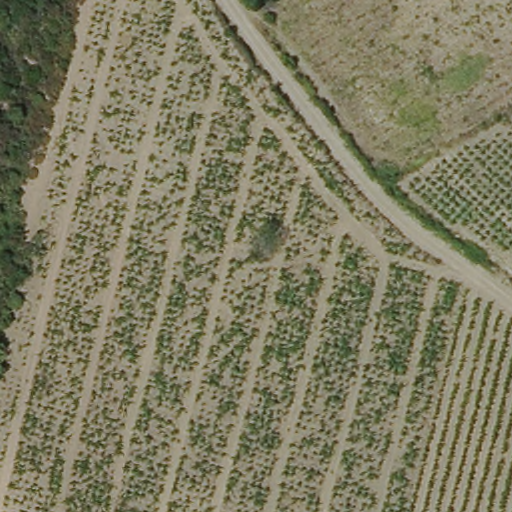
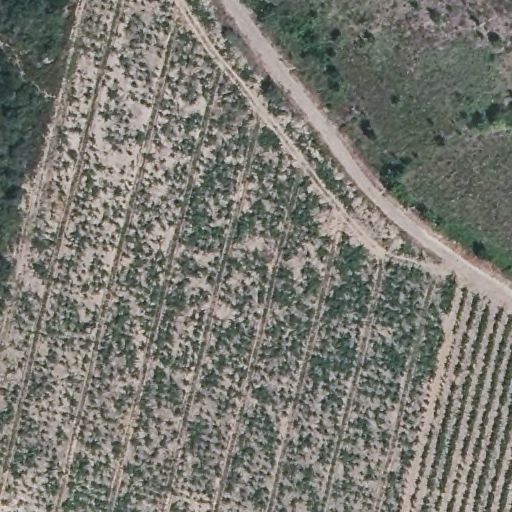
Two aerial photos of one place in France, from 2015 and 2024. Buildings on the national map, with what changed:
[]

